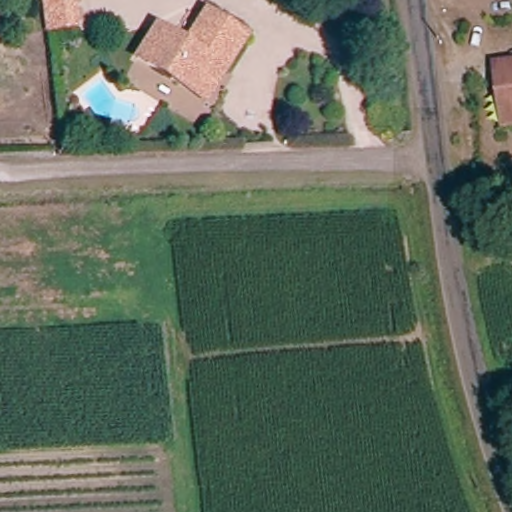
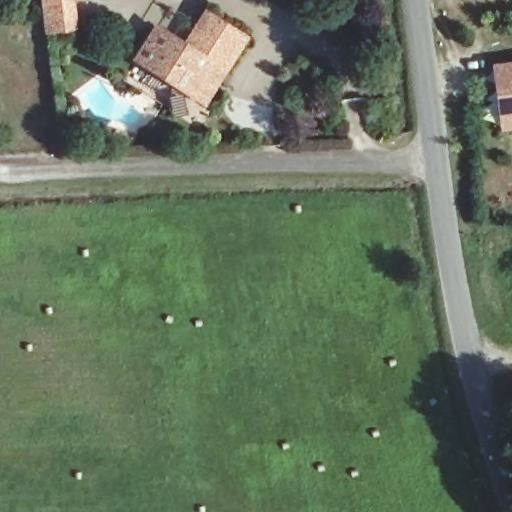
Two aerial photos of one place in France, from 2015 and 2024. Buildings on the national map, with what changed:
unchanged [(80,25),(51,28),(48,0),(77,0),(80,25)]
unchanged [(187,96),(131,62),(151,30),(182,47),(200,18),(235,42),(217,75),(200,104),(187,96)]
unchanged [(505,135),(504,125),(499,92),(496,68),(512,65),(512,134),(505,135)]

